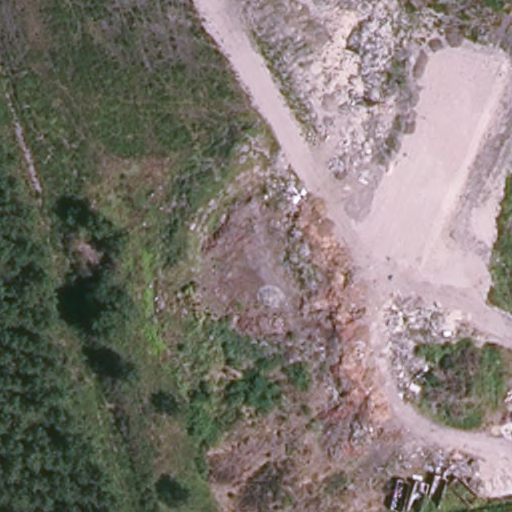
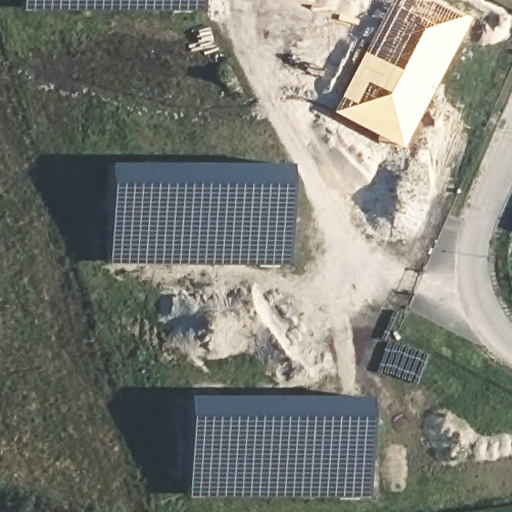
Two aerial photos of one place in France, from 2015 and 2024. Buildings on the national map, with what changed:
new [(20,12),(20,0),(200,0),(201,11),(20,12)]
new [(403,150),(332,112),(390,0),(434,0),(470,19),(403,150)]
new [(101,165),(285,165),(285,258),(101,258),(101,165)]
new [(177,401),(362,397),(363,491),(180,495),(177,401)]

